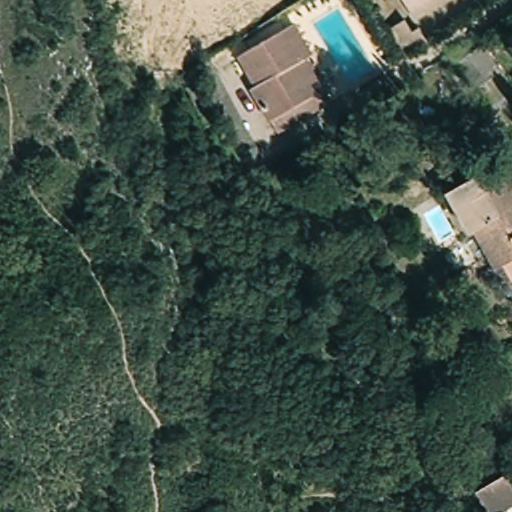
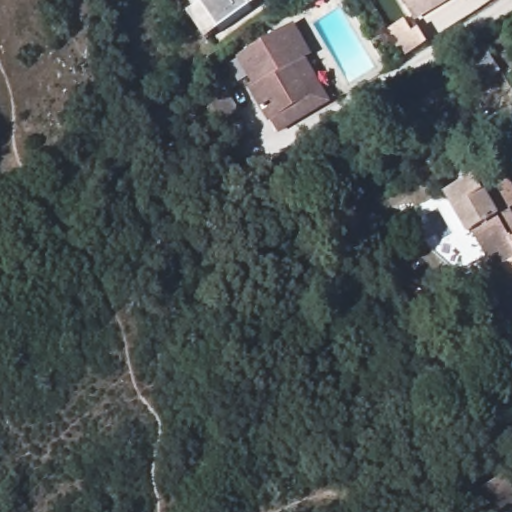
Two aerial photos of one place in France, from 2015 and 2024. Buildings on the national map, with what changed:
new [(260,1),(206,41),(186,14),(193,8),(187,0),(259,0),(260,1)]
unchanged [(412,4),(409,0),(418,0),(412,4)]
unchanged [(451,0),(421,17),(412,4),(418,0),(450,0),(451,0)]
unchanged [(409,14),(429,43),(408,57),(390,26),(409,14)]
unchanged [(307,59),(334,104),(278,134),(236,53),(298,21),(312,55),(307,59)]
unchanged [(501,69),(474,86),(455,55),(481,39),(501,69)]
unchanged [(500,267),(491,272),(467,229),(488,217),(475,194),(450,208),(442,193),(483,169),(492,184),(502,179),(512,197),(512,205),(502,211),(512,229),(512,274),(506,278),(500,267)]
unchanged [(512,274),(512,289),(506,278),(512,274)]
unchanged [(512,486),(512,512),(500,512),(493,499),(512,486)]

